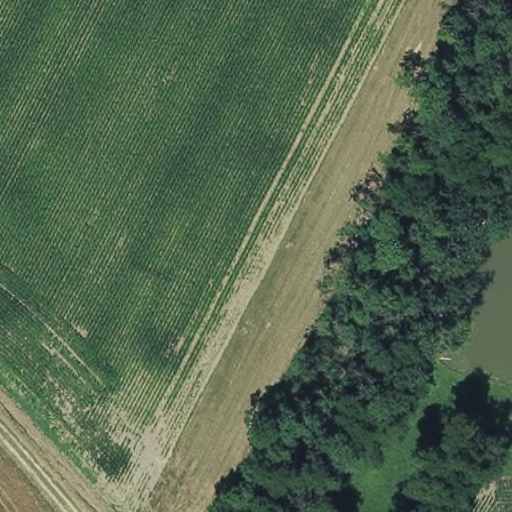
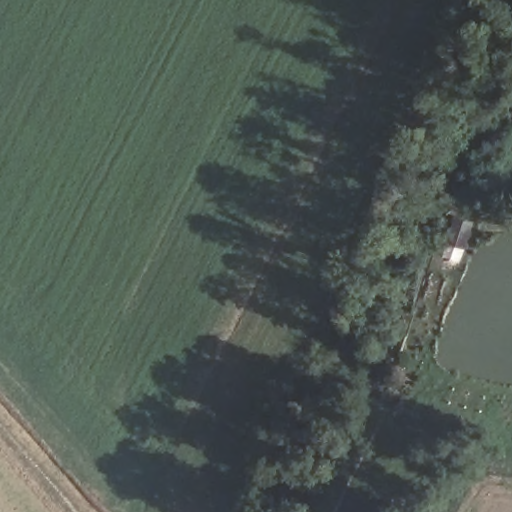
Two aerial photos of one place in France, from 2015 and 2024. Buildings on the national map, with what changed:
unchanged [(498,204),(497,216),(477,212),(479,201),(498,204)]

